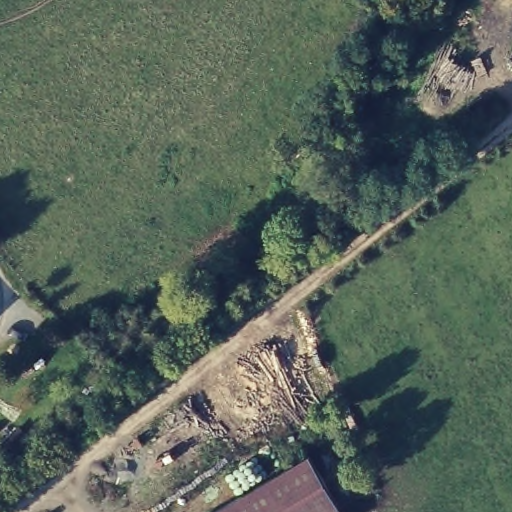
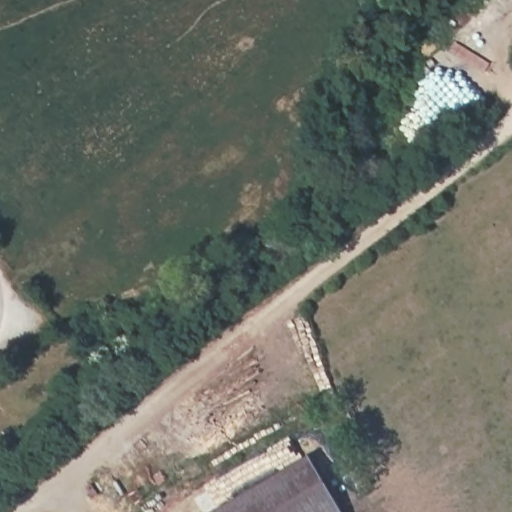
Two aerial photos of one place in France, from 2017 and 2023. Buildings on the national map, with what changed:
unchanged [(341,512),(211,512),(310,456),(341,512)]

